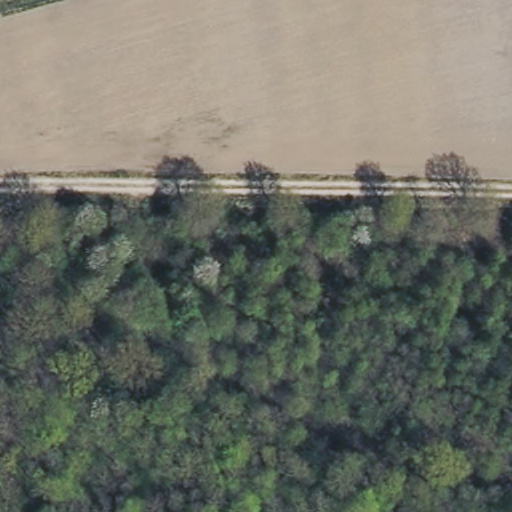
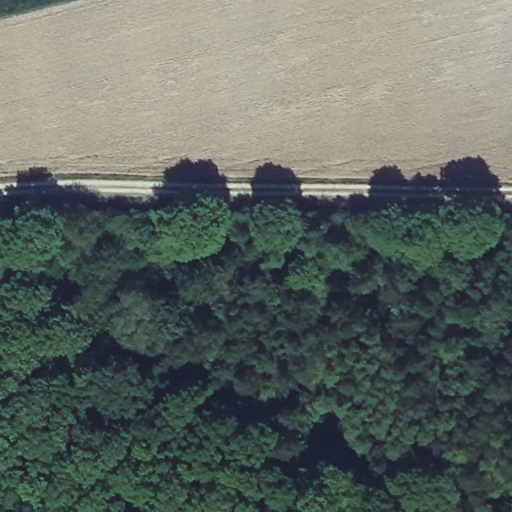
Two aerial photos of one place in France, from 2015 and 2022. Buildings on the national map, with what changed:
[]

